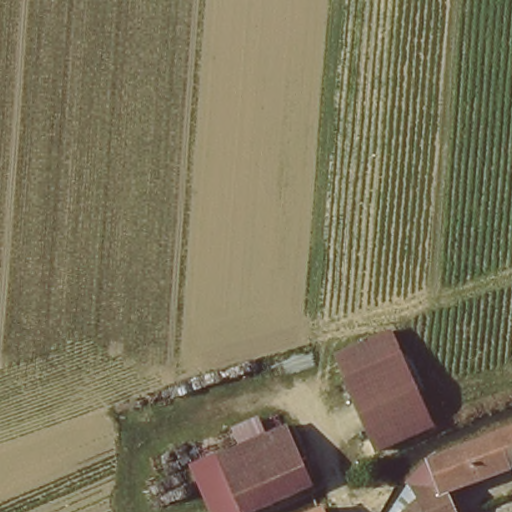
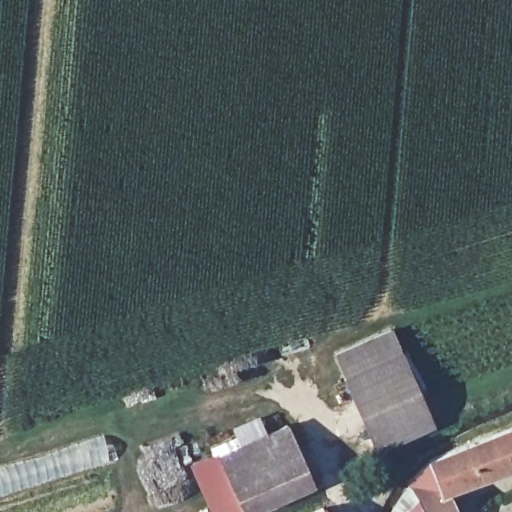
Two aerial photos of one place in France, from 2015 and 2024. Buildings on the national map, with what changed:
unchanged [(348,377),(337,353),(392,328),(403,353),(348,377)]
unchanged [(403,353),(437,432),(382,455),(348,377),(403,353)]
unchanged [(255,512),(244,512),(218,455),(286,425),(314,486),(255,512)]
unchanged [(496,474),(451,490),(421,503),(412,485),(428,462),(506,433),(512,431),(512,468),(496,474)]
new [(0,468),(104,436),(111,462),(0,497),(0,468)]
new [(218,455),(244,512),(212,512),(191,466),(218,455)]
unchanged [(451,490),(456,512),(410,512),(421,503),(451,490)]
unchanged [(324,512),(313,512),(322,507),(324,512)]

